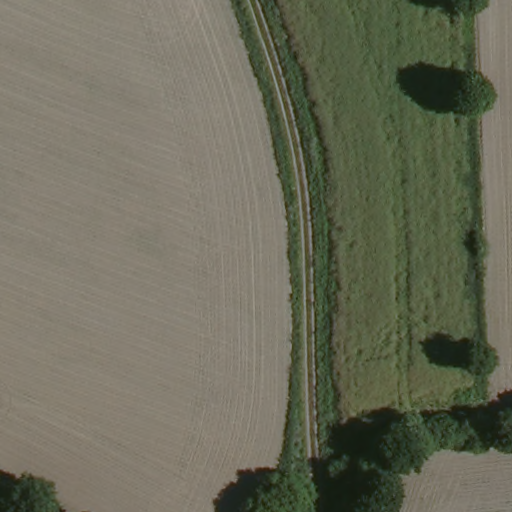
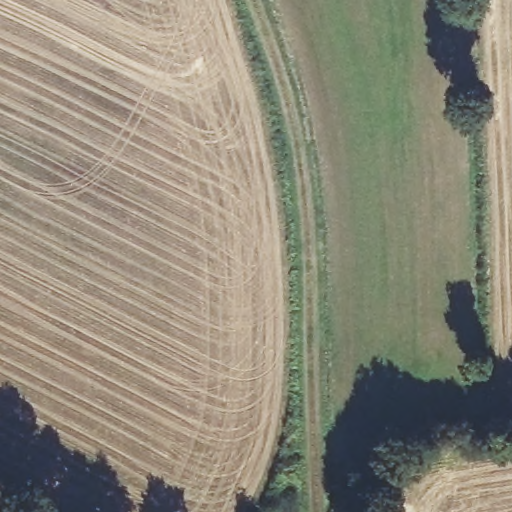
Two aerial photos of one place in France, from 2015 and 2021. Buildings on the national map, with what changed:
[]

